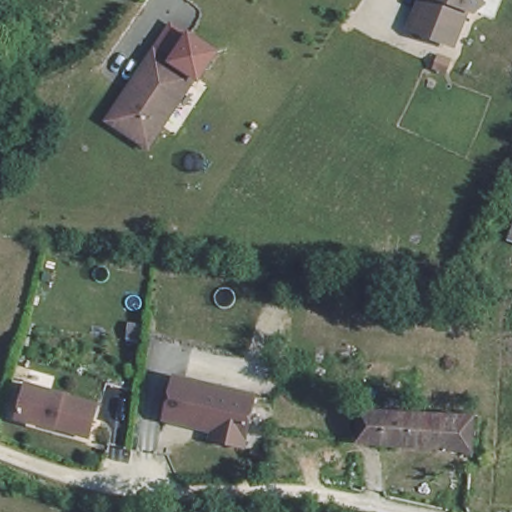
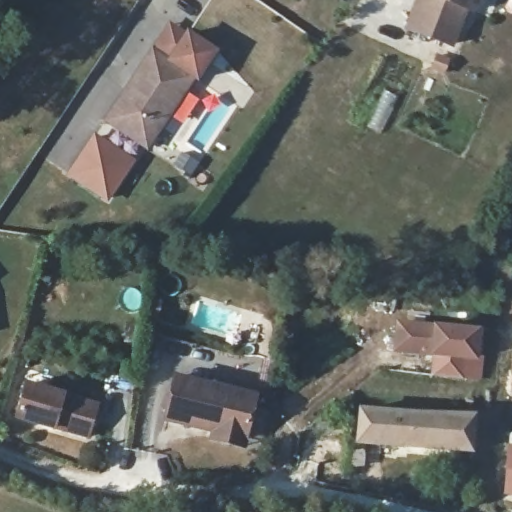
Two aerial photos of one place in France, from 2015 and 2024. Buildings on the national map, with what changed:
unchanged [(475,7),(457,45),(410,26),(418,0),(478,0),(475,7)]
unchanged [(166,21),(187,32),(216,50),(197,82),(190,77),(194,70),(152,45),(166,21)]
unchanged [(109,117),(135,74),(143,60),(152,45),(194,70),(185,85),(178,96),(151,142),(109,117)]
new [(93,135),(134,162),(107,203),(66,176),(93,135)]
unchanged [(512,240),(505,238),(512,220),(512,240)]
new [(395,320),(434,325),(480,328),(478,361),(430,357),(393,352),(395,320)]
unchanged [(258,393),(250,447),(212,441),(212,433),(167,420),(178,377),(258,393)]
unchanged [(67,392),(67,393),(101,401),(95,433),(60,425),(60,426),(21,418),(28,385),(67,392)]
unchanged [(365,405),(477,414),(474,454),(362,446),(365,405)]
new [(505,444),(507,431),(512,432),(512,497),(501,496),(505,444)]

